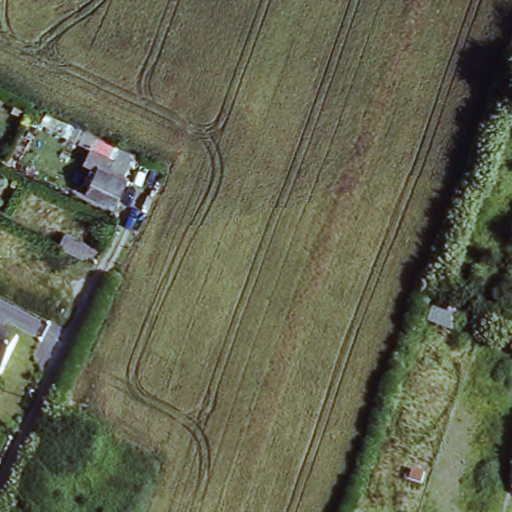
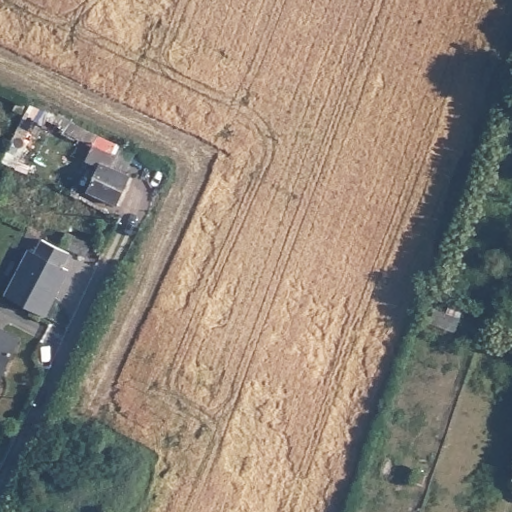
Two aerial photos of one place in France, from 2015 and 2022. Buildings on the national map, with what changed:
unchanged [(116,154),(111,165),(127,173),(115,202),(90,191),(101,167),(87,161),(95,144),(116,154)]
unchanged [(87,253),(63,242),(68,232),(92,243),(87,253)]
new [(63,269),(70,272),(47,319),(7,300),(30,252),(35,255),(42,241),(70,254),(63,269)]
unchanged [(20,343),(0,381),(0,380),(0,333),(20,343)]
demolished [(350,488),(335,482),(343,459),(358,464),(350,488)]

